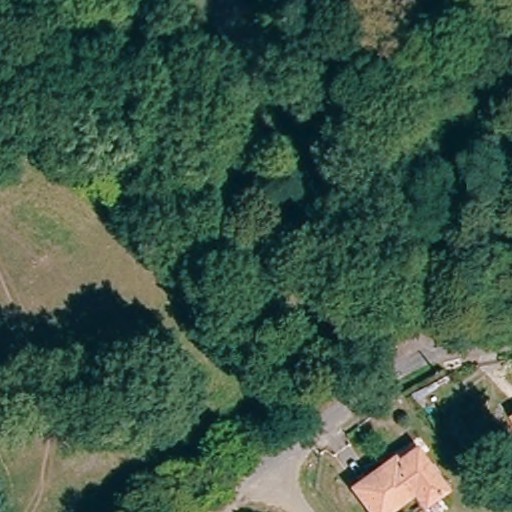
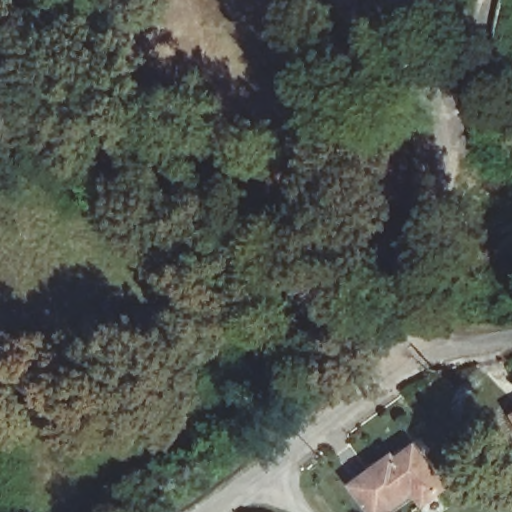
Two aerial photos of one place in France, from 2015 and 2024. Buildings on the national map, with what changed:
unchanged [(281,233),(252,277),(185,227),(216,184),(220,188),(281,233)]
unchanged [(443,488),(422,504),(413,490),(383,512),(372,512),(354,485),(384,463),(397,455),(405,465),(421,454),(443,488)]

